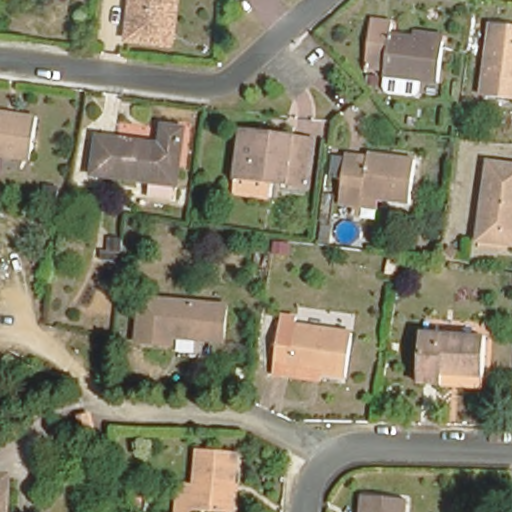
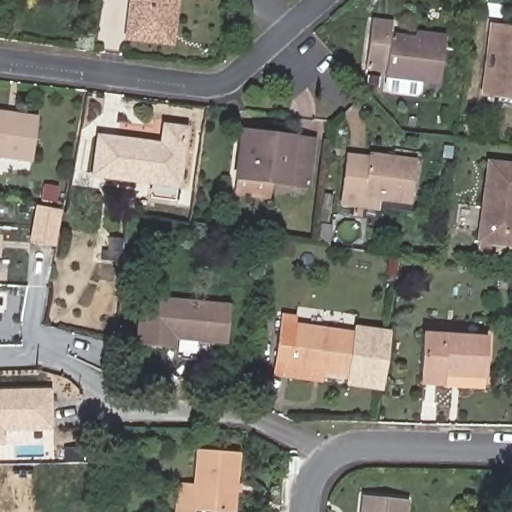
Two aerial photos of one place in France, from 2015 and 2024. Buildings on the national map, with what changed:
unchanged [(136,42),(141,0),(187,0),(181,49),(136,42)]
unchanged [(480,92),(490,22),(512,25),(512,97),(480,92)]
unchanged [(392,26),(390,37),(415,41),(416,36),(443,40),(437,86),(386,78),(386,77),(365,73),(373,23),(392,26)]
unchanged [(40,162),(0,155),(0,108),(47,115),(40,162)]
unchanged [(165,143),(168,124),(189,127),(182,185),(99,174),(104,135),(165,143)]
unchanged [(303,185),(237,176),(242,136),(243,129),(277,134),(309,139),(303,185)]
unchanged [(416,157),(410,201),(378,197),(377,207),(341,201),(346,161),(347,152),(368,155),(369,151),(416,157)]
unchanged [(512,164),(512,243),(478,239),(491,161),(512,164)]
unchanged [(318,224),(331,225),(327,245),(323,245),(320,244),(317,244),(316,244),(318,224)]
unchanged [(288,259),(275,257),(277,241),(290,243),(288,259)]
unchanged [(266,278),(255,277),(257,260),(268,261),(266,278)]
unchanged [(160,343),(137,342),(142,298),(227,306),(224,342),(174,337),(172,345),(160,343)]
unchanged [(297,375),(281,373),(290,317),(306,319),(305,326),(362,334),(356,377),(330,372),(328,380),(297,375)]
new [(347,376),(356,377),(362,334),(353,332),(354,326),(391,331),(381,391),(347,386),(347,376)]
unchanged [(482,373),(442,370),(441,380),(418,378),(422,330),(485,333),(482,373)]
new [(0,446),(0,390),(51,388),(52,431),(4,430),(4,446),(0,446)]
unchanged [(95,436),(80,438),(77,420),(84,419),(91,418),(94,431),(95,436)]
unchanged [(182,494),(184,481),(200,482),(203,451),(242,454),(237,512),(231,512),(197,509),(197,512),(181,512),(182,494)]
demolished [(0,473),(16,474),(13,512),(0,512),(0,473)]
unchanged [(367,491),(409,495),(407,512),(365,512),(367,491)]

